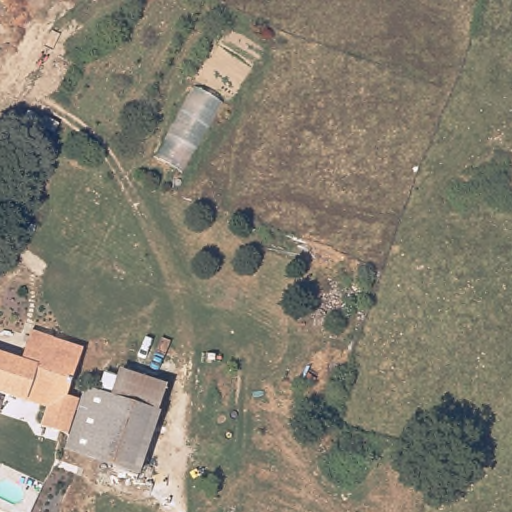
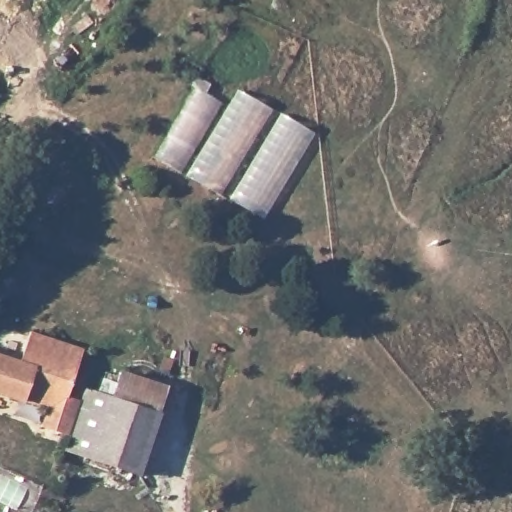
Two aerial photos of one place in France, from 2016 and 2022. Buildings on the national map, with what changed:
new [(160,157),(199,89),(230,108),(241,90),(314,133),(266,218),(160,157)]
unchanged [(36,319),(107,345),(91,383),(23,358),(36,319)]
unchanged [(91,383),(90,388),(74,431),(38,418),(43,402),(0,387),(0,351),(23,358),(91,383)]
unchanged [(123,370),(166,385),(159,410),(114,395),(123,370)]
unchanged [(90,388),(114,395),(159,410),(137,469),(69,445),(74,431),(90,388)]

